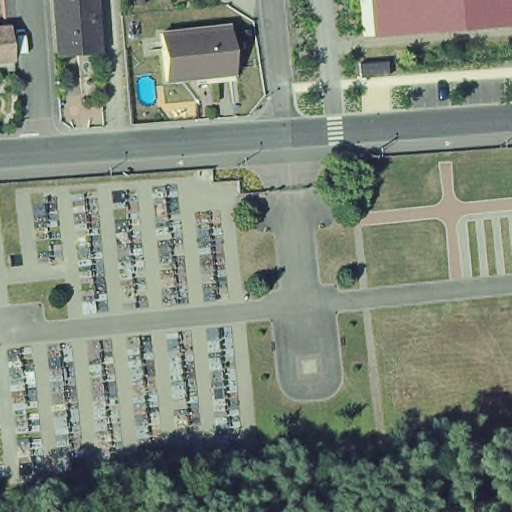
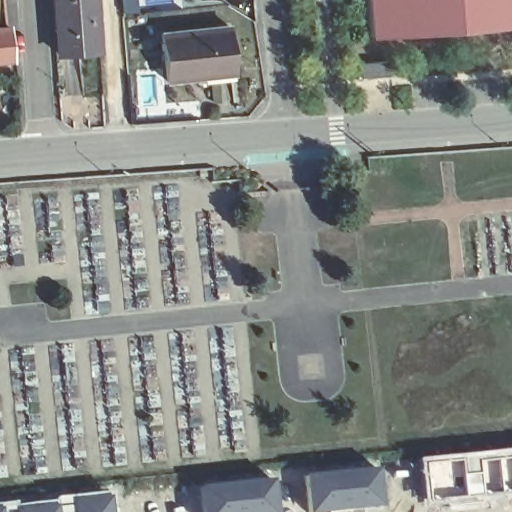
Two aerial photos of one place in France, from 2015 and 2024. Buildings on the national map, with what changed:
unchanged [(49,52),(45,0),(85,0),(89,49),(49,52)]
unchanged [(361,45),(357,0),(384,0),(388,43),(361,45)]
unchanged [(388,43),(384,0),(418,0),(422,40),(388,43)]
unchanged [(422,40),(418,0),(453,0),(457,37),(422,40)]
unchanged [(457,37),(453,0),(488,0),(491,34),(457,37)]
unchanged [(491,34),(488,0),(512,0),(512,32),(491,34)]
unchanged [(12,62),(0,63),(0,30),(10,29),(12,62)]
unchanged [(230,78),(162,84),(157,38),(226,31),(230,78)]
new [(512,450),(512,495),(423,503),(418,460),(512,450)]
new [(376,468),(380,508),(335,512),(307,512),(303,475),(376,468)]
new [(271,479),(275,512),(200,512),(197,486),(271,479)]
new [(110,494),(112,512),(70,512),(68,497),(110,494)]
new [(53,502),(53,499),(68,497),(70,512),(12,512),(11,507),(53,502)]
new [(3,512),(0,512),(0,504),(2,504),(3,512)]

